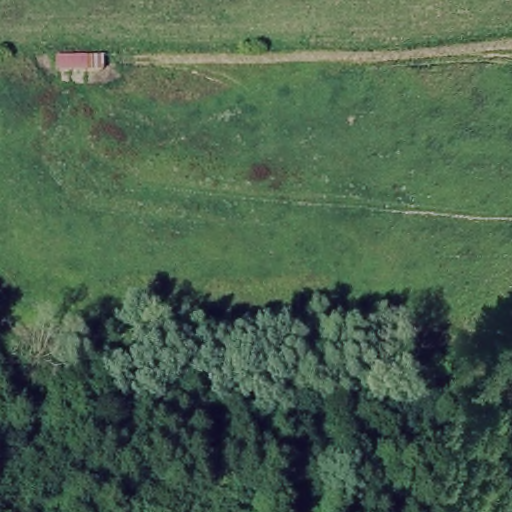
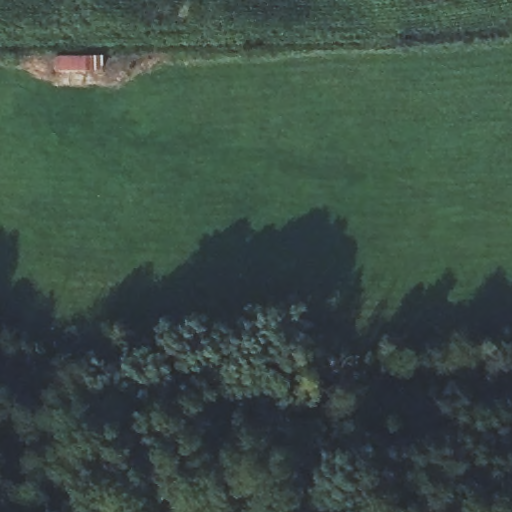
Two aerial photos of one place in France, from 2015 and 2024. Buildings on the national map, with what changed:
unchanged [(101,57),(101,70),(55,70),(55,57),(101,57)]

